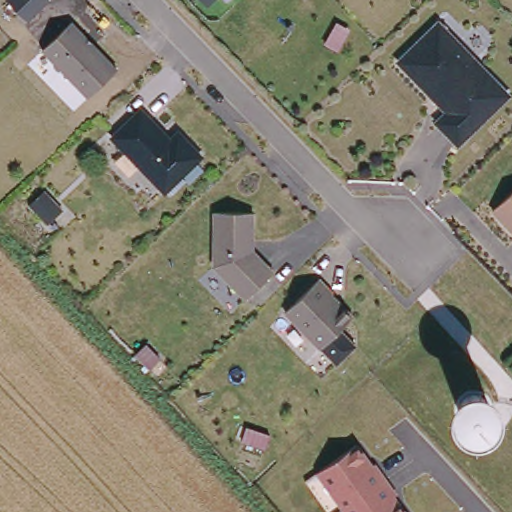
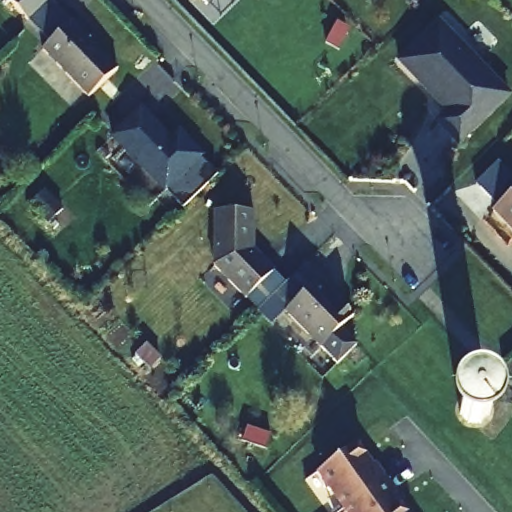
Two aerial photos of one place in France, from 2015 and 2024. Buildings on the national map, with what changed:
unchanged [(205,5),(200,0),(211,0),(205,5)]
unchanged [(87,98),(41,50),(70,22),(117,69),(87,98)]
unchanged [(447,112),(399,62),(438,24),(507,96),(457,145),(436,123),(447,112)]
unchanged [(164,192),(111,138),(140,110),(169,140),(177,132),(200,156),(164,192)]
unchanged [(44,189),(65,210),(47,227),(27,207),(44,189)]
unchanged [(512,191),(512,232),(491,211),(512,191)]
unchanged [(212,266),(214,211),(252,212),(252,241),(249,241),(249,248),(272,273),(244,299),(212,266)]
unchanged [(332,293),(330,295),(352,317),(320,349),(285,312),(319,278),(332,293)]
unchanged [(359,447),(372,465),(375,463),(397,495),(396,497),(406,512),(343,512),(317,475),(359,447)]

